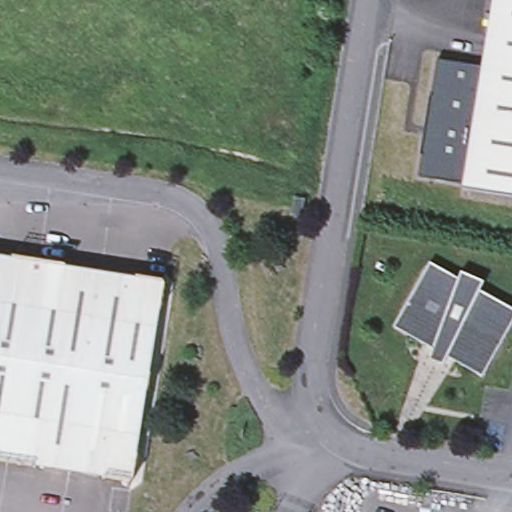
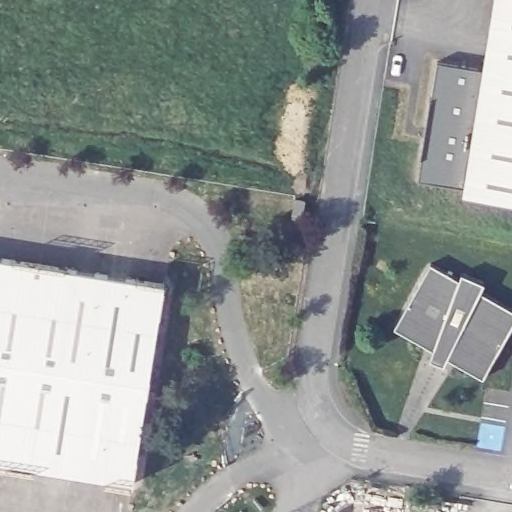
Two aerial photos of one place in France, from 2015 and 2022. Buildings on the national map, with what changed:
unchanged [(512,197),(463,189),(465,185),(418,177),(422,155),(420,154),(430,96),(432,96),(438,59),(483,67),(495,0),(512,0),(512,197)]
unchanged [(305,204),(302,220),(293,219),(295,202),(305,204)]
unchanged [(161,286),(131,484),(0,464),(0,261),(161,286)]
unchanged [(480,286),(476,295),(512,315),(512,320),(478,380),(390,332),(425,267),(454,283),(457,277),(480,286)]

